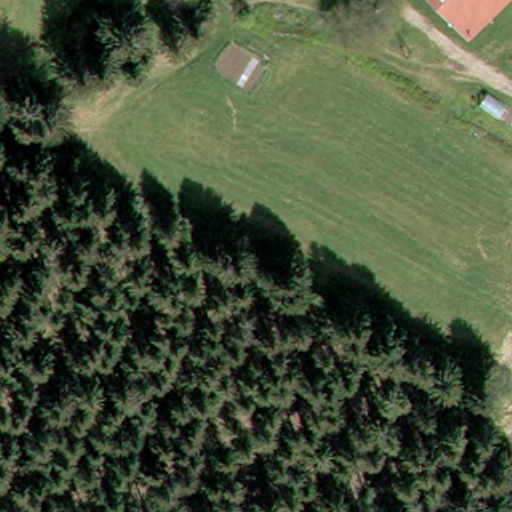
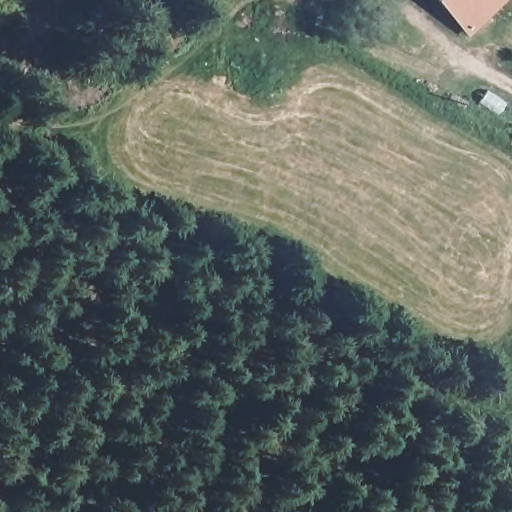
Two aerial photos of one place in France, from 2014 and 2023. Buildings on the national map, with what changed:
unchanged [(467,34),(434,0),(501,0),(467,34)]

